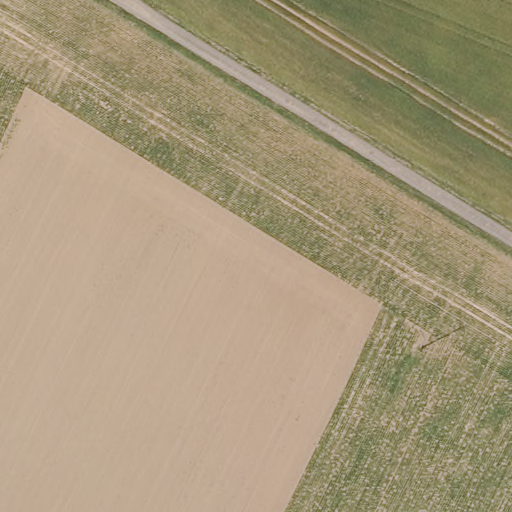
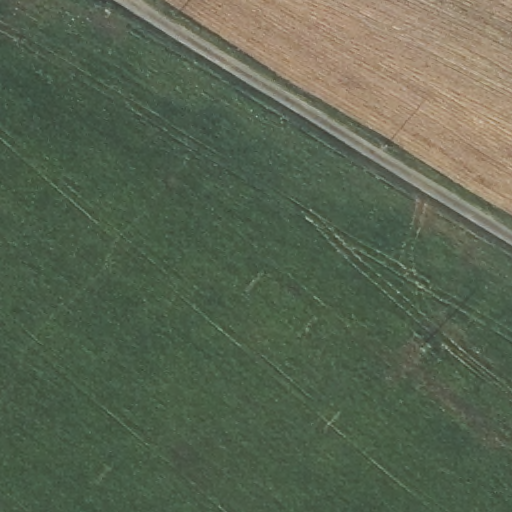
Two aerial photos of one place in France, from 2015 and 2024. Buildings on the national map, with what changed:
[]

